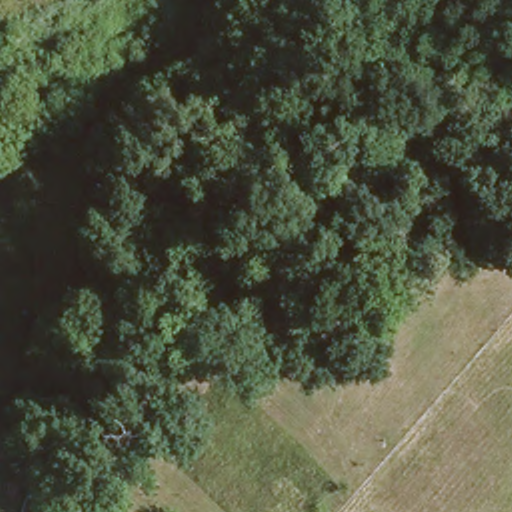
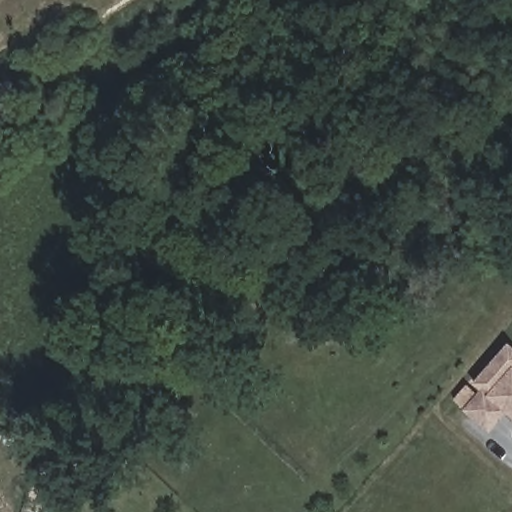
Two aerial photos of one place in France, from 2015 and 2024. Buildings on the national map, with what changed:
new [(462,409),(479,389),(472,382),(508,341),(512,345),(512,417),(507,412),(489,432),(462,409)]
new [(58,473),(47,503),(44,512),(35,512),(24,508),(28,497),(39,466),(58,473)]

